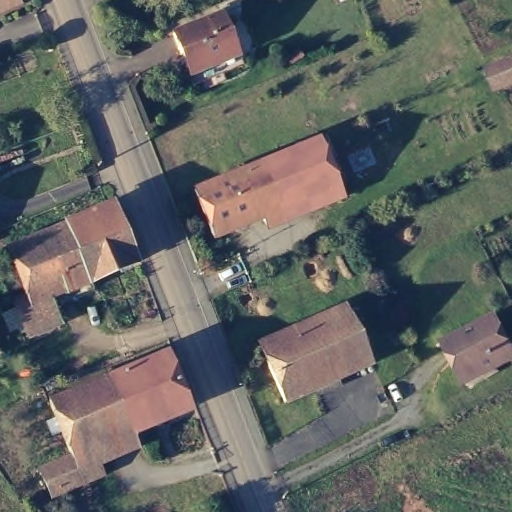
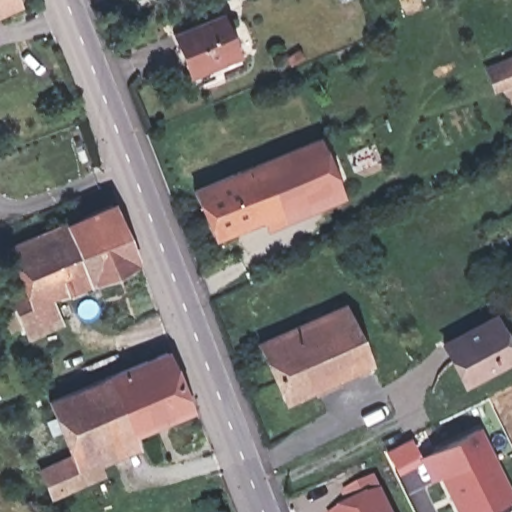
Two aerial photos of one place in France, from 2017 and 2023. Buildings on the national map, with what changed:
unchanged [(0,0),(15,0),(0,6),(0,0)]
unchanged [(214,9),(234,58),(184,76),(164,29),(214,9)]
new [(512,60),(512,79),(499,85),(492,68),(512,60)]
unchanged [(331,200),(327,190),(215,238),(195,189),(322,137),(342,183),(346,194),(331,200)]
unchanged [(112,203),(137,263),(52,295),(61,321),(27,335),(15,302),(27,297),(7,248),(112,203)]
unchanged [(346,299),(372,357),(286,395),(259,337),(346,299)]
unchanged [(491,315),(512,356),(461,379),(441,339),(491,315)]
unchanged [(167,350),(190,407),(92,448),(102,474),(52,494),(42,469),(73,455),(52,399),(167,350)]
new [(480,428),(512,493),(512,496),(479,512),(463,512),(443,472),(434,476),(424,455),(480,428)]
demolished [(360,506),(502,442),(512,464),(512,512),(363,512),(360,506)]
new [(374,474),(393,512),(334,512),(350,504),(343,489),(374,474)]

